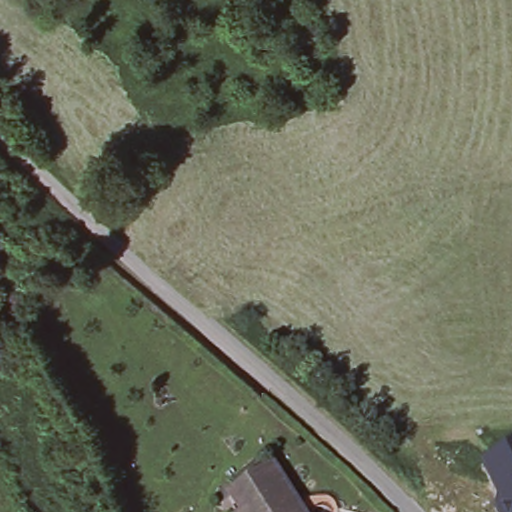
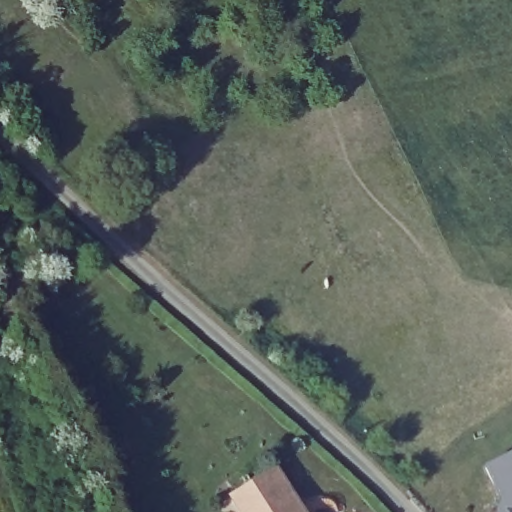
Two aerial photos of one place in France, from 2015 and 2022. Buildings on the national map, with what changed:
unchanged [(496,512),(478,470),(512,454),(512,512),(496,512)]
unchanged [(228,491),(272,464),(274,469),(280,465),(299,498),(294,501),(300,512),(236,512),(239,511),(228,491)]

